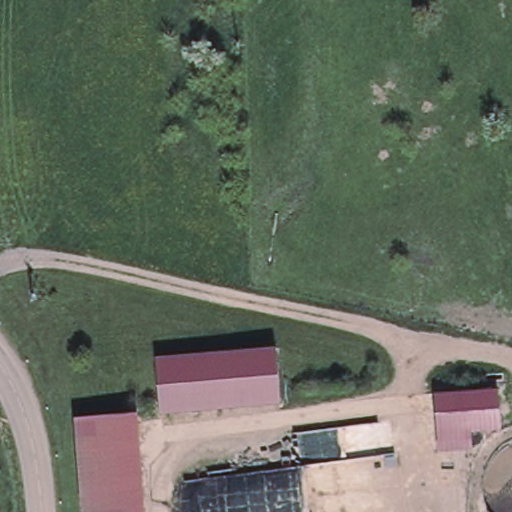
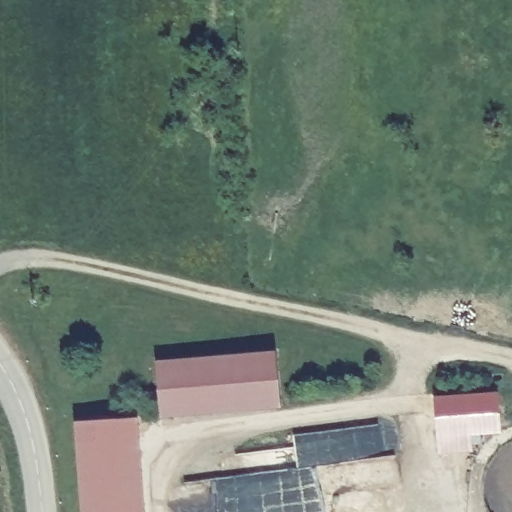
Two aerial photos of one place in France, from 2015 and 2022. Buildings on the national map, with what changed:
unchanged [(280,346),(284,401),(162,411),(157,356),(280,346)]
unchanged [(495,428),(466,430),(467,450),(437,451),(431,394),(492,388),(495,428)]
unchanged [(138,512),(95,512),(87,418),(130,416),(138,512)]

